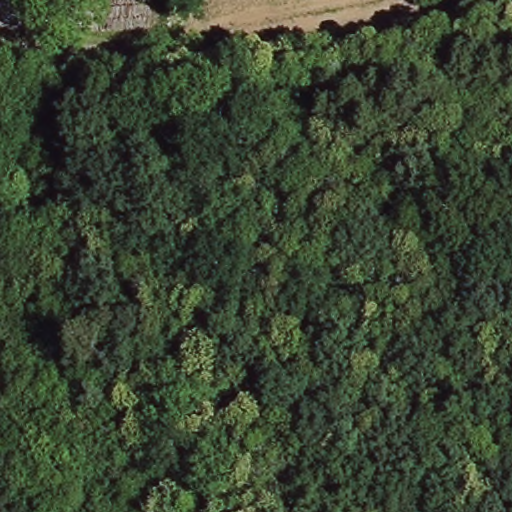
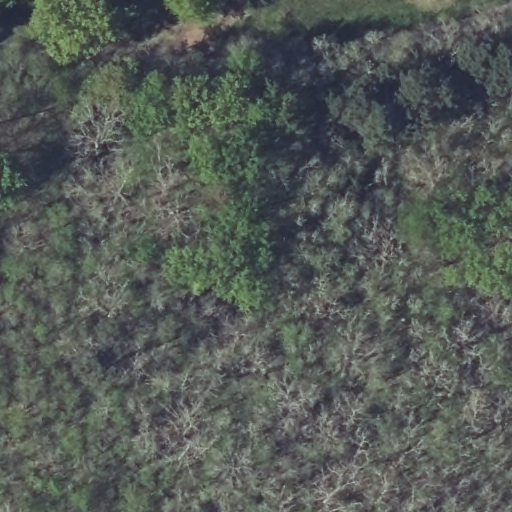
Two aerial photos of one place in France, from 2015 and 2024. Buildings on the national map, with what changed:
[]

